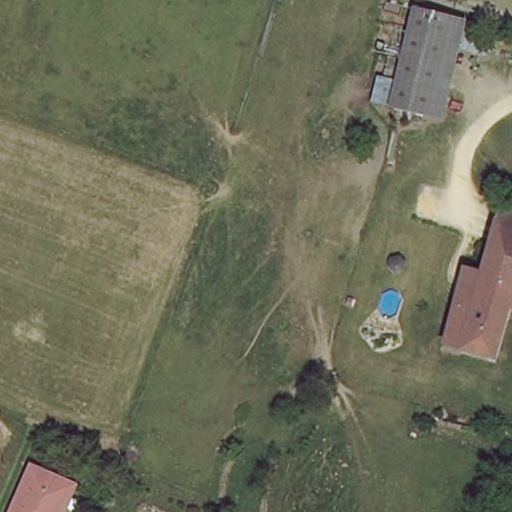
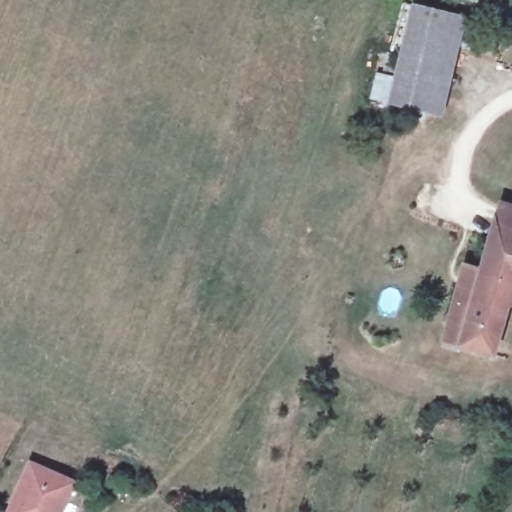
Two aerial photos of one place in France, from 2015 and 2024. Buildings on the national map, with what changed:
unchanged [(416,6),(455,15),(430,114),(392,104),(416,6)]
unchanged [(496,201),(512,206),(512,248),(485,241),(496,201)]
unchanged [(476,273),(485,241),(512,248),(512,285),(511,285),(505,306),(490,357),(456,347),(461,328),(444,323),(460,270),(476,273)]
unchanged [(512,285),(512,308),(505,306),(511,285),(512,285)]
unchanged [(30,458),(70,478),(52,512),(3,512),(2,512),(30,458)]

